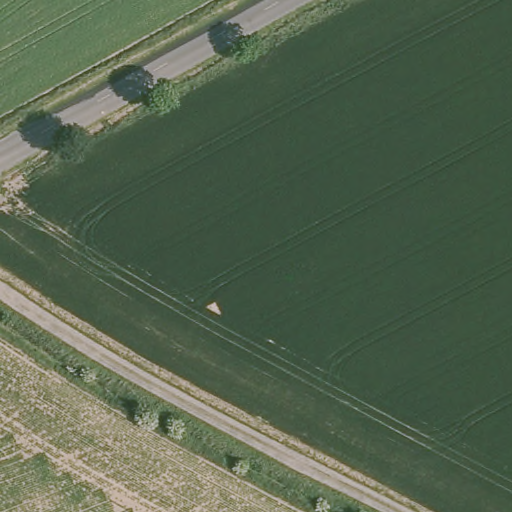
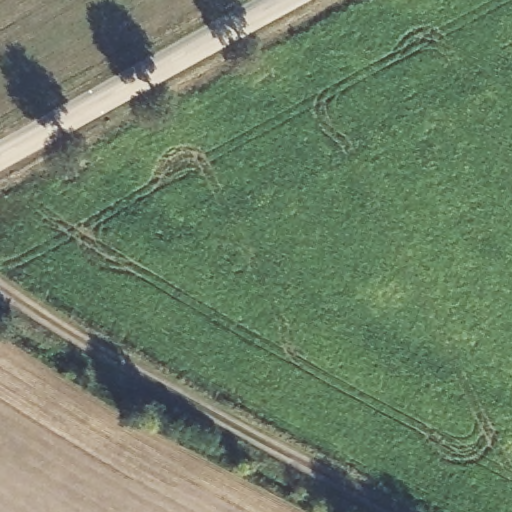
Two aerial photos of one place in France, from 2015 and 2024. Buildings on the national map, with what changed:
[]

